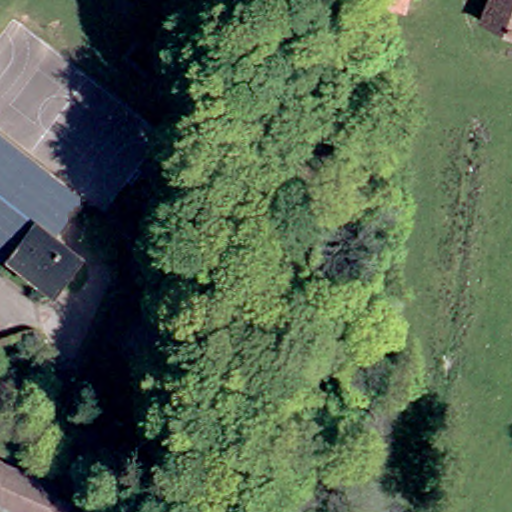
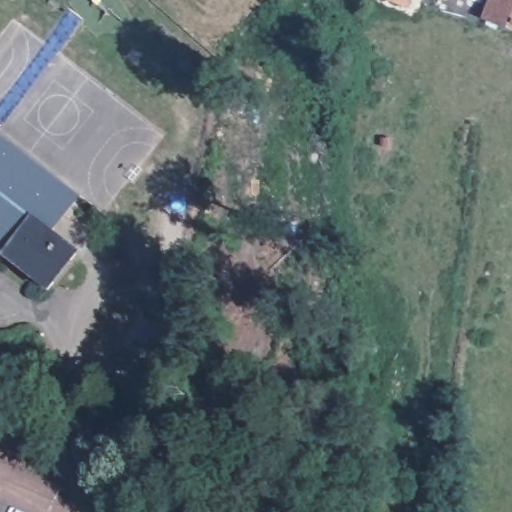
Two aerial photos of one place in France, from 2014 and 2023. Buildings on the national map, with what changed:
unchanged [(389,0),(408,0),(405,6),(389,0)]
unchanged [(492,0),(512,0),(512,29),(485,18),(492,0)]
unchanged [(82,199),(56,235),(84,257),(53,296),(0,253),(0,131),(82,199)]
unchanged [(58,512),(4,512),(0,511),(0,459),(68,488),(58,512)]

